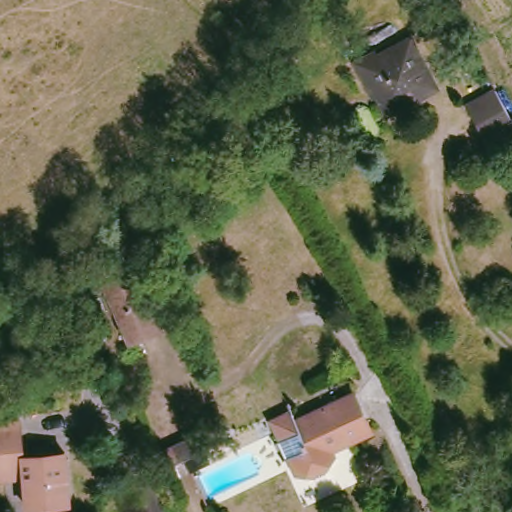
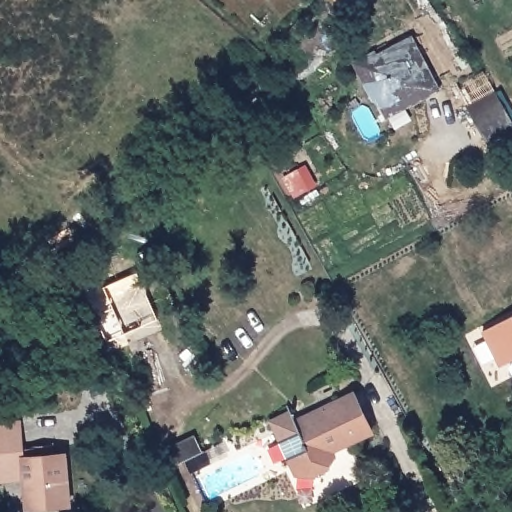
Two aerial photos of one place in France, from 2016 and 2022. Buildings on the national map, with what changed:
unchanged [(375,95),(374,96),(356,63),(375,53),(377,59),(411,38),(437,88),(422,97),(388,114),(375,95)]
unchanged [(495,90),(512,120),(512,127),(489,139),(470,105),(495,90)]
unchanged [(124,338),(120,328),(99,281),(132,267),(154,314),(158,324),(124,338)]
new [(484,331),(512,317),(512,361),(501,366),(497,358),(484,365),(474,346),(487,339),(484,331)]
unchanged [(271,415),(291,406),(296,416),(354,388),(372,427),(347,439),(344,432),(329,439),(335,452),(321,472),(297,470),(271,415)]
unchanged [(24,457),(37,455),(35,447),(52,445),(52,454),(65,452),(70,505),(27,508),(25,477),(4,479),(0,480),(0,424),(20,422),(24,457)]

